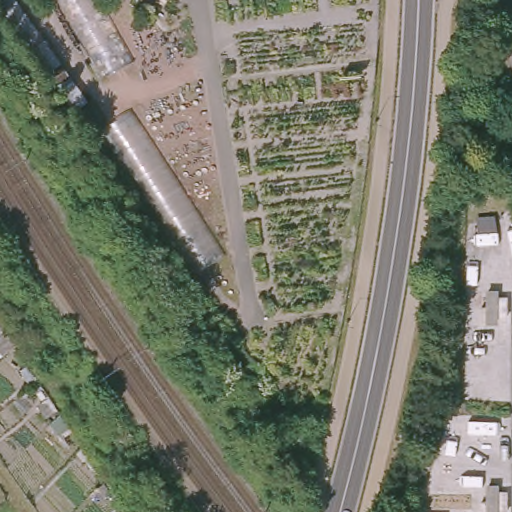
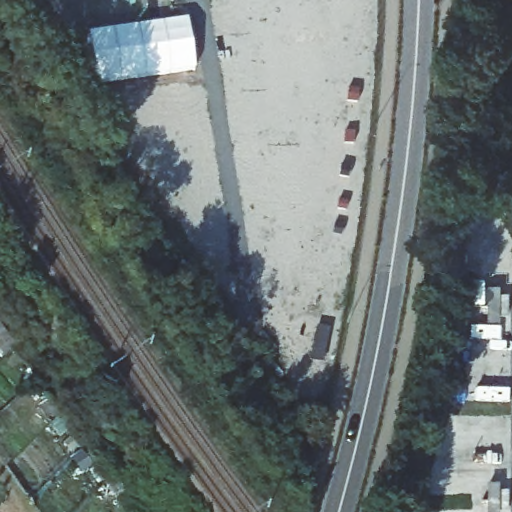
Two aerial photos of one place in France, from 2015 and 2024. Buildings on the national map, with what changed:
new [(96,83),(88,32),(188,18),(195,69),(96,83)]
new [(499,290),(499,297),(508,296),(508,318),(499,318),(499,325),(487,325),(487,290),(499,290)]
new [(499,491),(508,491),(508,512),(487,512),(487,485),(499,485),(499,491)]

